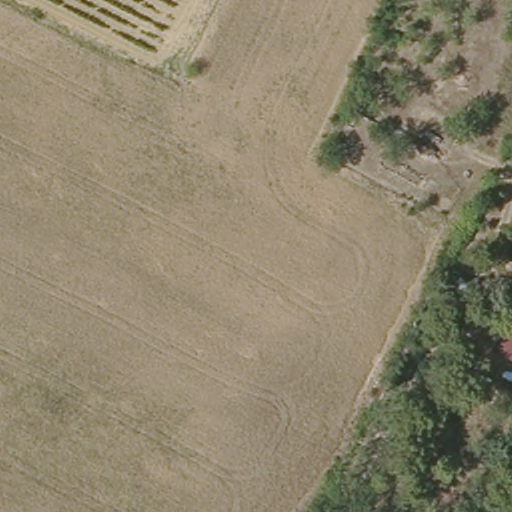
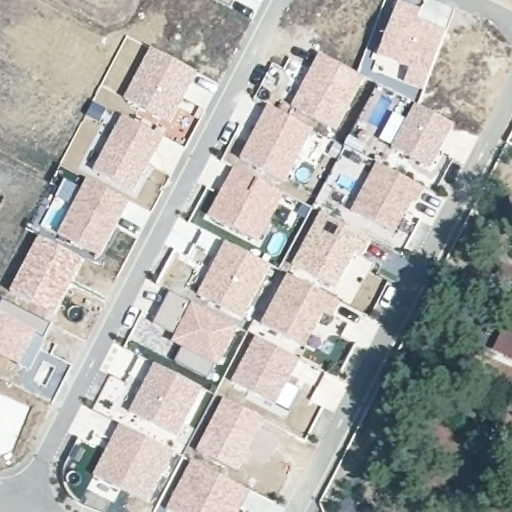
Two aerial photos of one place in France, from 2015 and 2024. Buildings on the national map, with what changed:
new [(215,0),(235,0),(231,8),(215,0)]
new [(397,1),(420,9),(417,17),(446,29),(435,63),(421,92),(400,81),(405,70),(376,56),(397,1)]
new [(198,72),(170,123),(125,99),(150,48),(198,72)]
new [(318,53),(357,73),(363,76),(335,131),(290,106),(318,53)]
new [(455,124),(430,170),(392,149),(415,105),(455,124)]
new [(313,130),(287,183),(240,159),(267,106),(313,130)]
new [(164,137),(134,192),(94,170),(122,116),(164,137)]
new [(376,162),(423,187),(394,235),(350,211),(376,162)]
new [(235,164),(247,170),(255,174),(284,193),(258,242),(206,215),(235,164)]
new [(129,202),(100,258),(58,235),(73,207),(56,198),(65,181),(82,189),(87,180),(129,202)]
new [(320,211),(370,239),(360,257),(357,256),(333,292),(328,289),(291,267),(320,211)]
new [(38,236),(83,261),(55,315),(10,292),(38,236)]
new [(224,240),(270,265),(242,319),(197,294),(224,240)]
new [(306,348),(262,325),(287,275),(342,302),(333,318),(322,314),(306,348)]
new [(52,327),(30,372),(20,368),(0,358),(0,307),(3,302),(52,327)]
new [(172,336),(191,302),(238,326),(207,380),(173,362),(180,349),(169,342),(172,336)]
unchanged [(512,356),(493,347),(506,321),(512,308),(512,356)]
new [(300,359),(287,384),(300,390),(289,412),(277,405),(232,383),(255,337),(300,359)]
new [(152,363),(203,389),(178,439),(127,412),(152,363)]
new [(27,407),(25,415),(22,414),(8,456),(0,453),(0,394),(27,407)]
new [(222,397),(264,420),(237,472),(193,451),(222,397)]
new [(118,423),(175,451),(148,504),(91,479),(118,423)]
new [(170,512),(167,511),(192,462),(250,492),(240,512),(170,512)]

